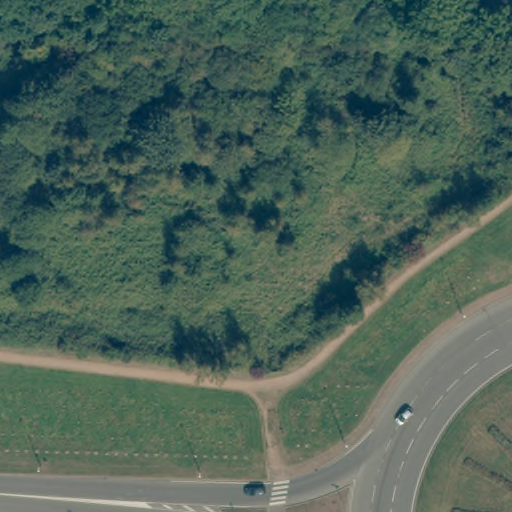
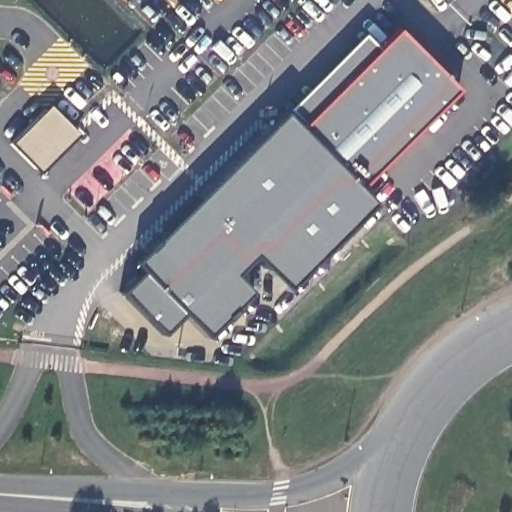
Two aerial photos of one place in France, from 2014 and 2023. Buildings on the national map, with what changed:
new [(357,189),(372,203),(286,289),(250,254),(230,275),(247,293),(205,336),(182,313),(162,331),(121,293),(144,272),(134,263),(283,114),(361,34),(376,49),(397,29),(455,89),(357,189)]
new [(38,174),(9,144),(49,105),(79,134),(38,174)]

